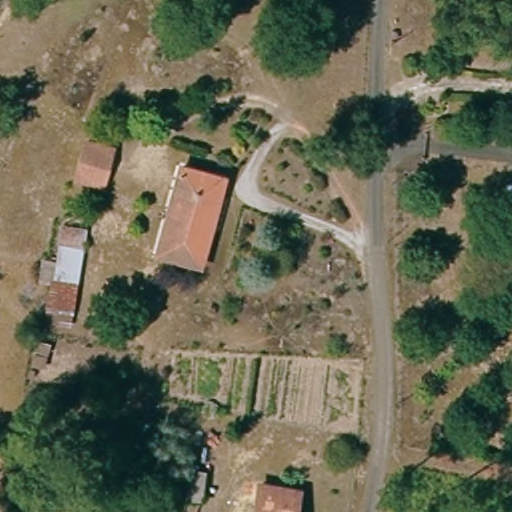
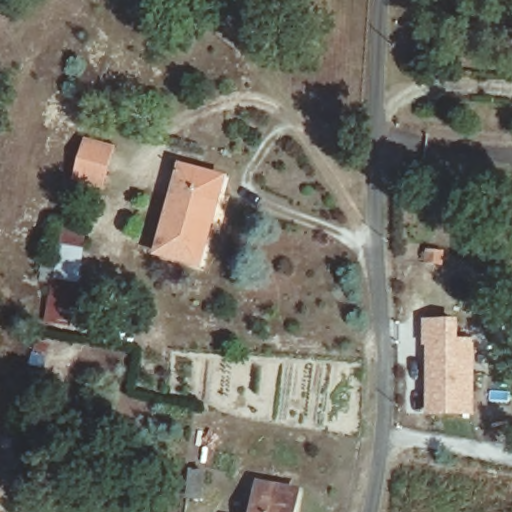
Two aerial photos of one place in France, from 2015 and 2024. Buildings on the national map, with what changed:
unchanged [(113,190),(81,182),(90,145),(120,152),(113,190)]
unchanged [(206,265),(162,255),(183,161),(229,171),(206,265)]
unchanged [(73,318),(47,312),(63,232),(89,236),(73,318)]
new [(460,318),(460,338),(476,338),(476,415),(425,415),(423,318),(460,318)]
unchanged [(259,512),(264,481),(304,488),(300,512),(259,512)]

